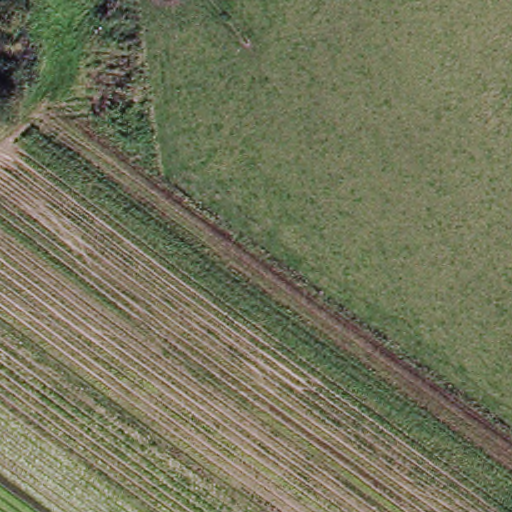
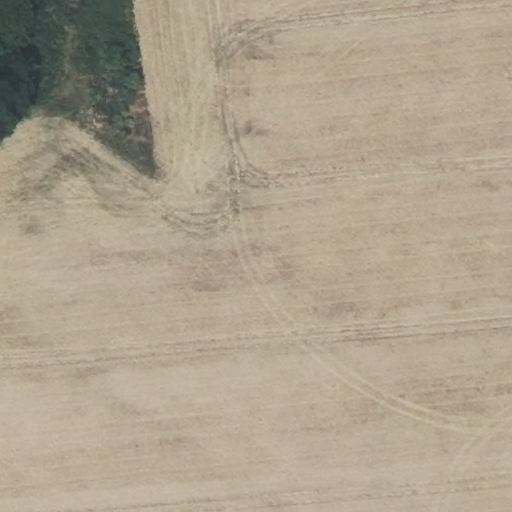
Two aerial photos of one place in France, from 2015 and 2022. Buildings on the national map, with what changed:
[]

